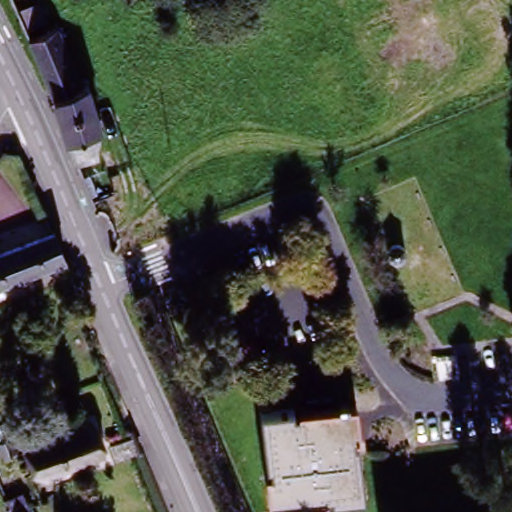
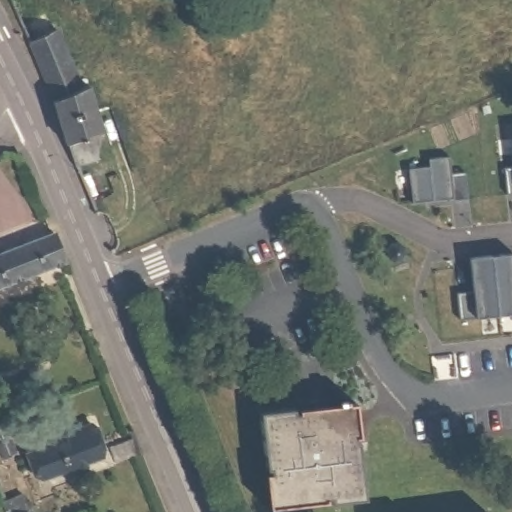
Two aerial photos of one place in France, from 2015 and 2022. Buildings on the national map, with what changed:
unchanged [(56,102),(21,16),(51,3),(87,88),(56,102)]
unchanged [(72,148),(56,102),(87,88),(93,86),(107,133),(104,135),(102,162),(82,171),(72,148)]
new [(467,202),(452,204),(452,202),(412,207),(407,173),(427,171),(426,163),(447,160),(450,177),(464,175),(467,202)]
new [(507,197),(502,170),(512,168),(512,196),(507,197)]
unchanged [(59,266),(0,289),(0,256),(47,237),(59,266)]
unchanged [(399,245),(403,248),(407,254),(405,257),(402,261),(396,263),(390,260),(387,253),(392,244),(399,245)]
new [(512,255),(512,316),(462,323),(458,297),(475,294),(470,261),(512,255)]
unchanged [(293,410),(294,415),(298,415),(299,411),(355,405),(359,438),(354,439),(355,445),(359,444),(364,499),(331,502),(330,498),(325,499),(325,503),(269,508),(266,476),(270,475),(270,469),(265,469),(260,414),(293,410)]
unchanged [(94,424),(105,457),(44,480),(30,446),(94,424)]
unchanged [(133,438),(140,454),(116,464),(109,447),(133,438)]
unchanged [(10,452),(0,457),(0,442),(5,440),(10,452)]
unchanged [(18,508),(27,504),(31,512),(7,512),(18,508)]

